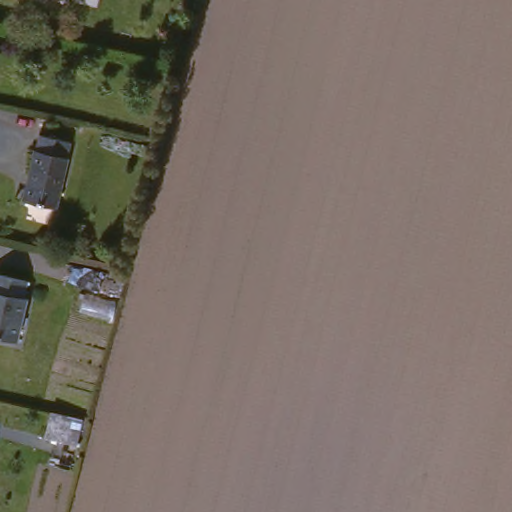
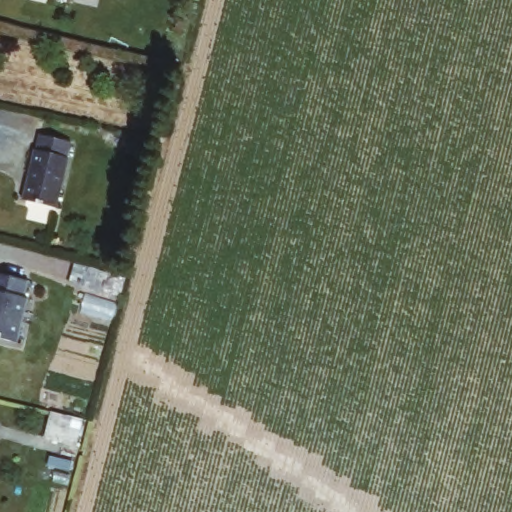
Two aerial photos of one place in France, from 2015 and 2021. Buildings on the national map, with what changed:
unchanged [(73,138),(69,156),(72,156),(64,201),(26,195),(37,144),(40,144),(42,131),(73,138)]
unchanged [(32,279),(27,299),(30,300),(21,339),(0,334),(0,273),(32,279)]

